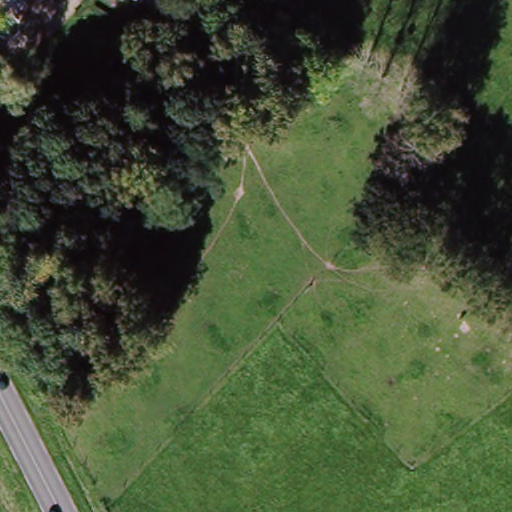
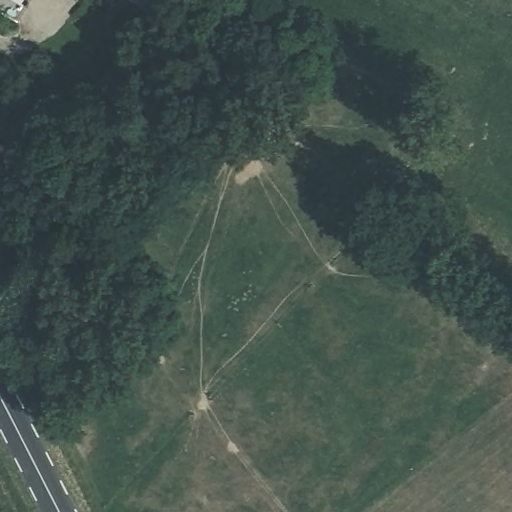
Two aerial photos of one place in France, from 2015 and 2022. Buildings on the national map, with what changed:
unchanged [(135,0),(152,0),(147,7),(135,0)]
unchanged [(46,218),(62,193),(87,209),(71,234),(46,218)]

